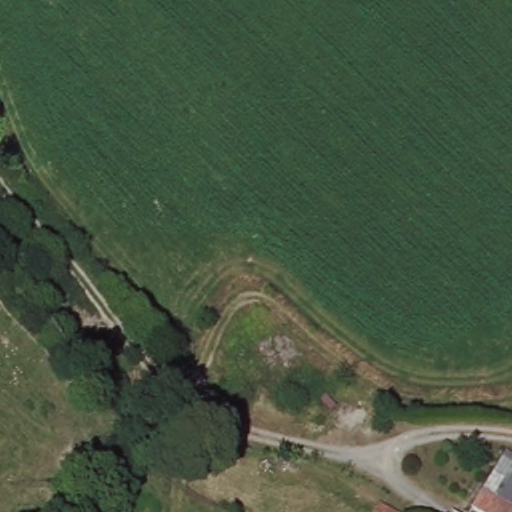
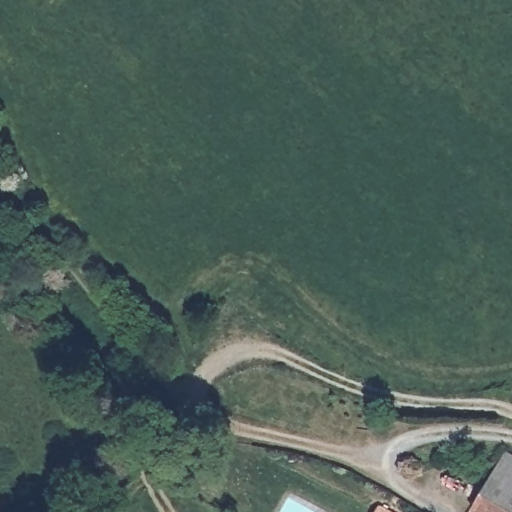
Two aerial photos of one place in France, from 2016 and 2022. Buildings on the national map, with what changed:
unchanged [(489,480),(504,455),(512,460),(512,512),(473,512),(471,511),(489,480)]
unchanged [(375,512),(380,503),(397,512),(375,512)]

